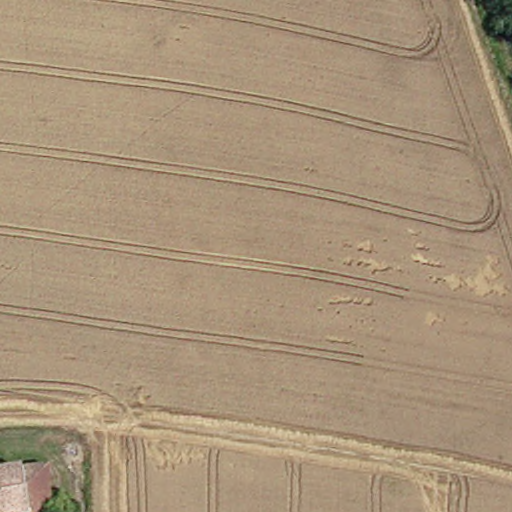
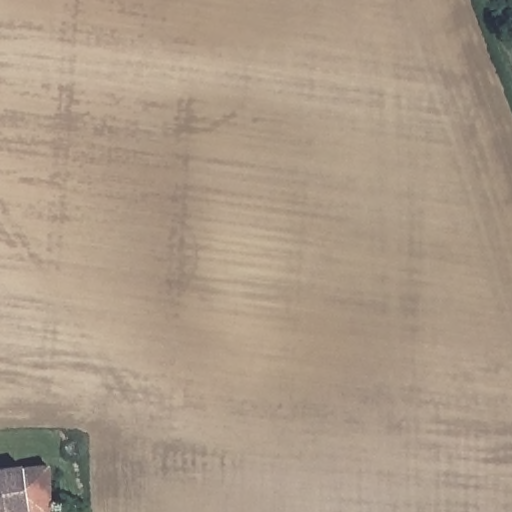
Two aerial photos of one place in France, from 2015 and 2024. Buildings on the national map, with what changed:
unchanged [(60,470),(61,512),(0,512),(0,473),(60,470)]

